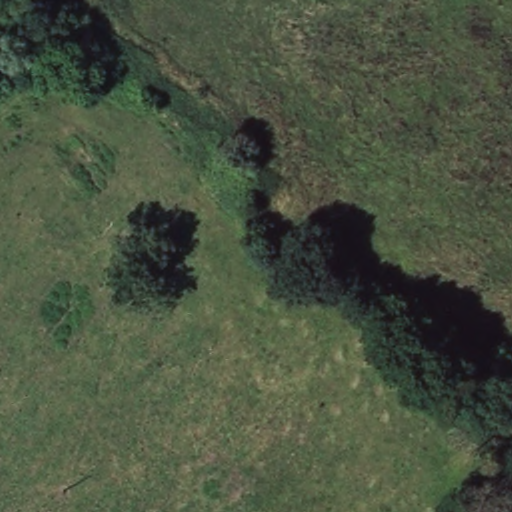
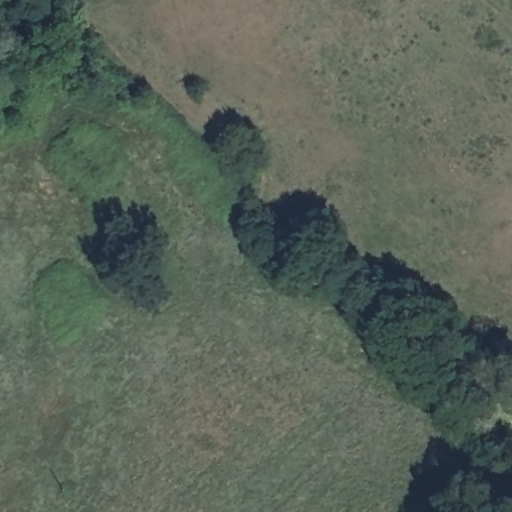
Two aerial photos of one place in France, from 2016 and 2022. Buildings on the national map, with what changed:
[]

